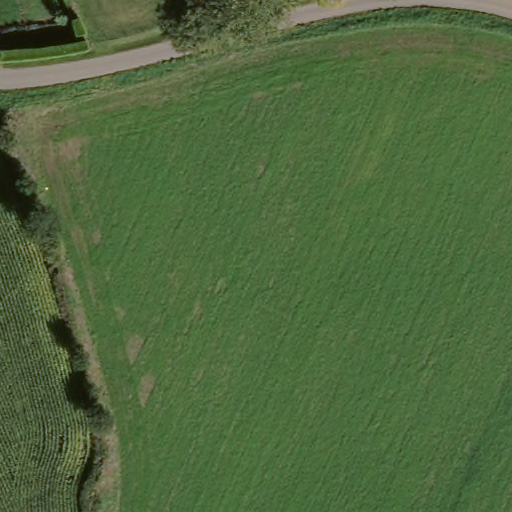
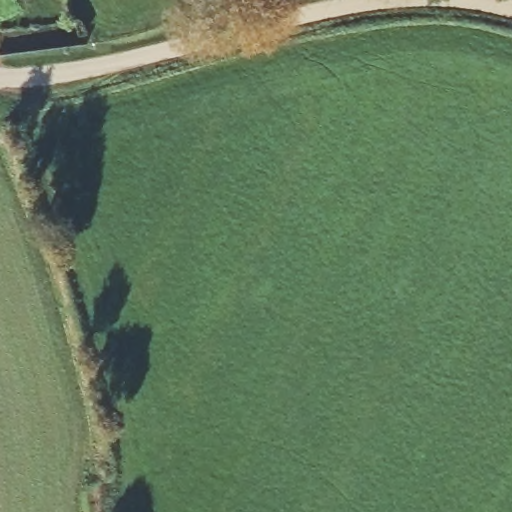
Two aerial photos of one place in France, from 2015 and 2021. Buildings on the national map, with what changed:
[]

